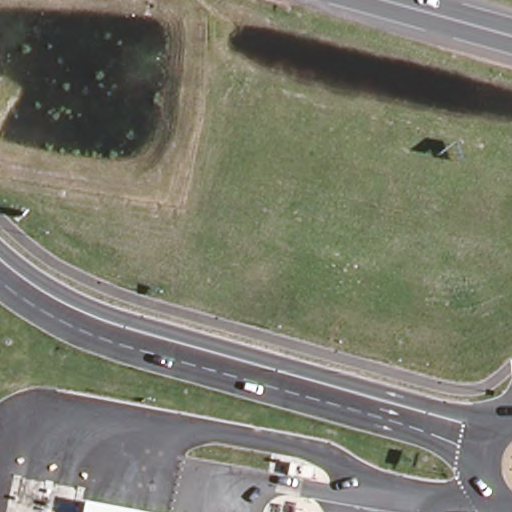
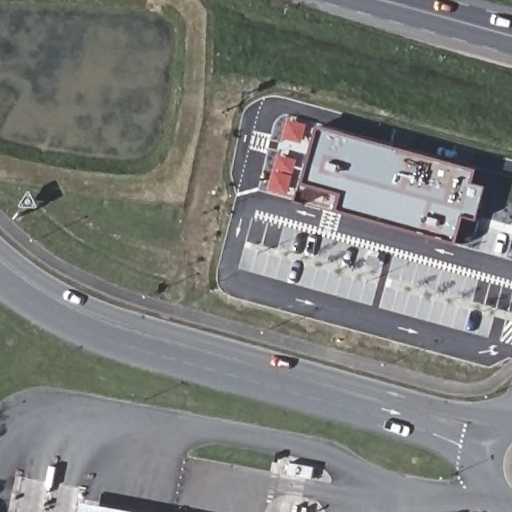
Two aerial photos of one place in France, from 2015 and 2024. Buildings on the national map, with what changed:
new [(322,124),(481,167),(477,180),(490,184),(480,219),(469,216),(461,244),(299,199),(322,124)]
unchanged [(144,512),(81,512),(84,501),(144,512)]

